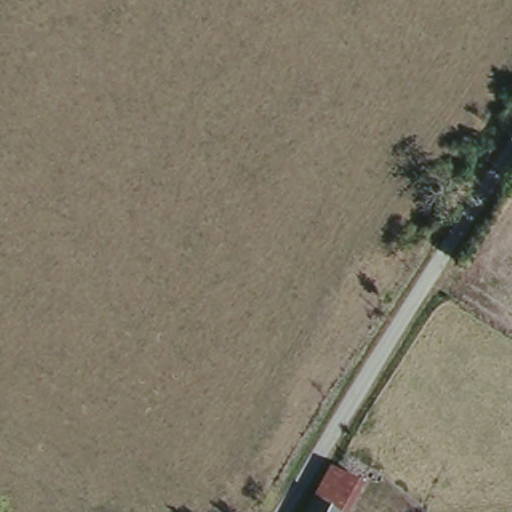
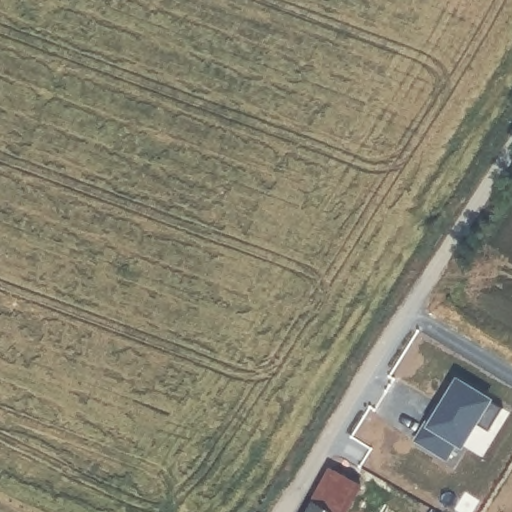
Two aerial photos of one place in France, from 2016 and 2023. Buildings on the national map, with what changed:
new [(438,404),(442,407),(458,381),(503,409),(489,432),(475,423),(462,445),(456,442),(446,459),(416,441),(427,422),(438,404)]
unchanged [(343,512),(304,512),(330,463),(360,481),(343,512)]

